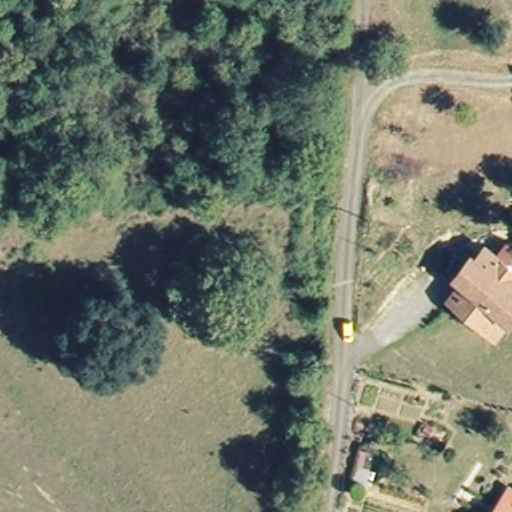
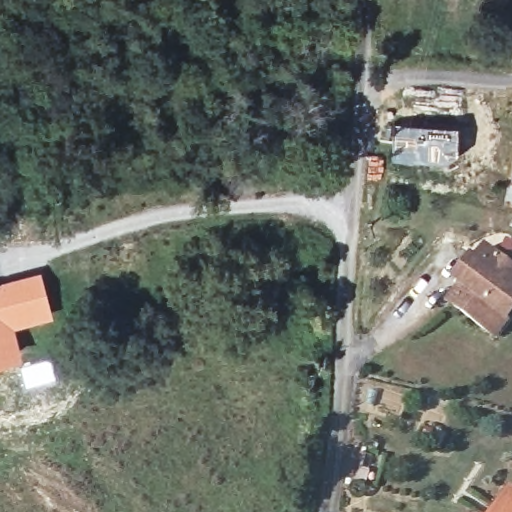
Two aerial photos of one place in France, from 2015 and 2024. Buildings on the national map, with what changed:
new [(455,157),(390,157),(391,120),(456,122),(455,157)]
unchanged [(510,246),(512,247),(512,262),(508,267),(500,259),(510,246)]
unchanged [(500,342),(489,335),(453,309),(465,291),(458,286),(473,264),(477,267),(486,252),(512,271),(512,326),(500,342)]
new [(52,314),(13,326),(20,352),(0,358),(0,280),(40,270),(52,314)]
unchanged [(512,490),(512,512),(494,512),(509,488),(512,490)]

